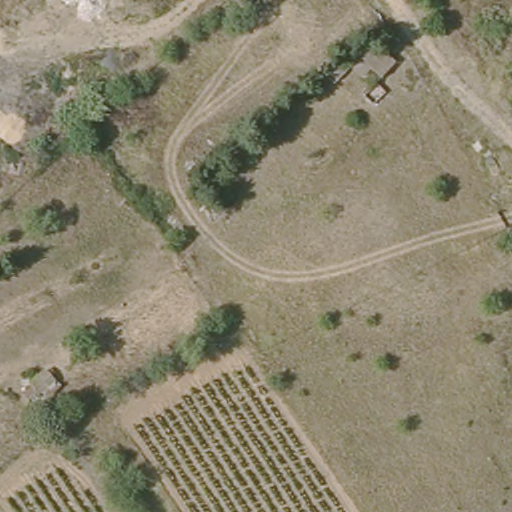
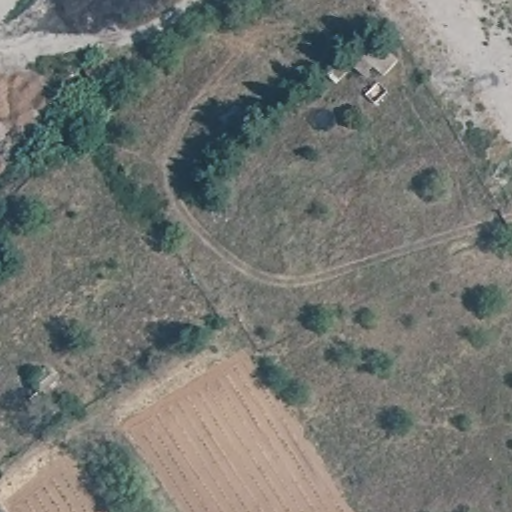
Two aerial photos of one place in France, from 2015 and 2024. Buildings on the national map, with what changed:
unchanged [(400,60),(375,83),(350,56),(375,32),(400,60)]
unchanged [(80,378),(46,399),(31,376),(65,354),(80,378)]

